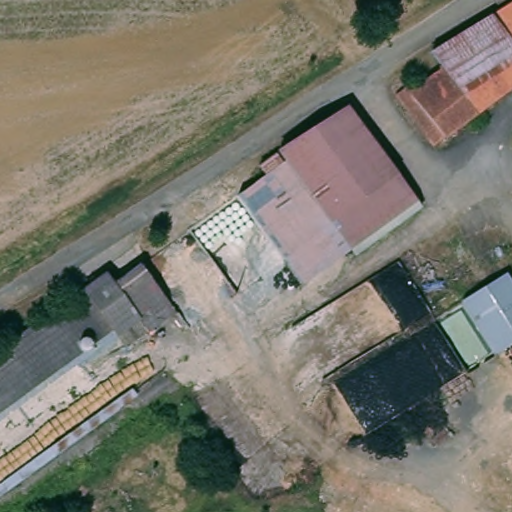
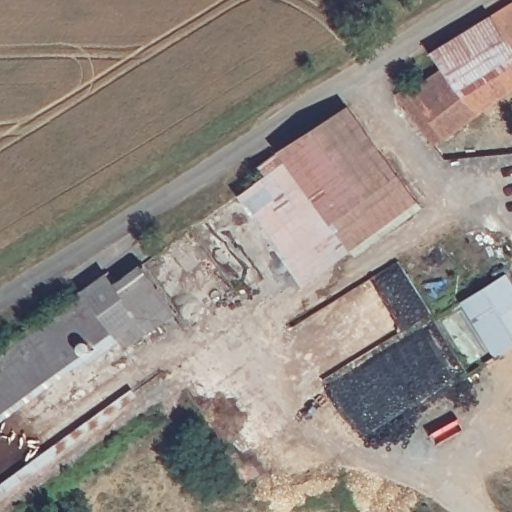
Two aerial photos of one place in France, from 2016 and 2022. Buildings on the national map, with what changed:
unchanged [(392,84),(401,78),(410,88),(437,70),(428,59),(429,54),(511,0),(512,0),(512,85),(433,143),(392,84)]
unchanged [(264,177),(258,166),(278,151),(344,105),(417,201),(423,208),(355,257),(351,251),(302,284),(236,195),(264,177)]
unchanged [(90,286),(109,272),(114,280),(139,263),(175,312),(134,344),(114,320),(88,288),(90,286)]
unchanged [(512,279),(512,353),(503,359),(469,306),(512,279)]
unchanged [(0,350),(88,288),(114,320),(124,335),(0,425),(0,350)]
unchanged [(169,378),(0,500),(0,483),(160,366),(169,378)]

